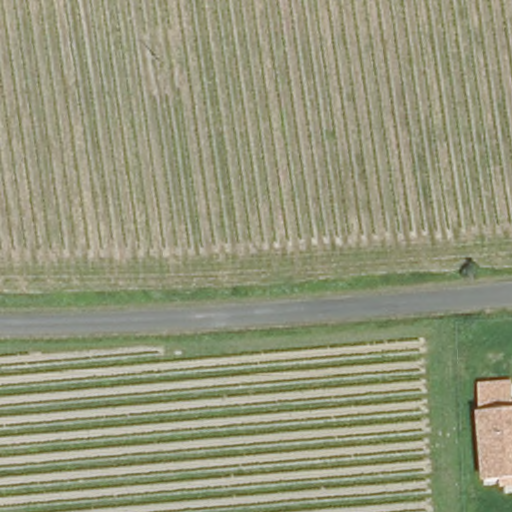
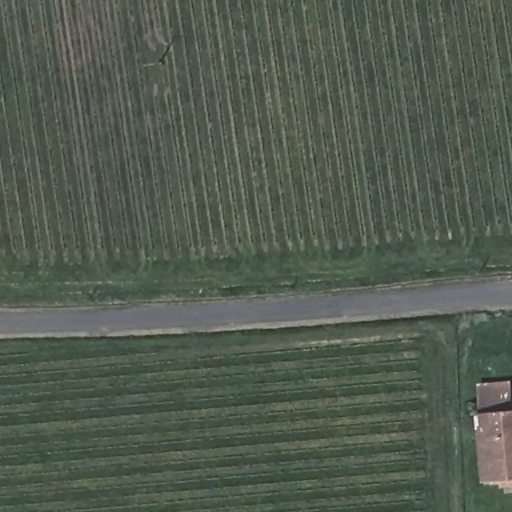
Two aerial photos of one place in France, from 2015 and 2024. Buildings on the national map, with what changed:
unchanged [(512,409),(484,411),(482,382),(511,380),(512,384),(512,409)]
unchanged [(484,411),(512,409),(512,478),(488,479),(484,411)]

